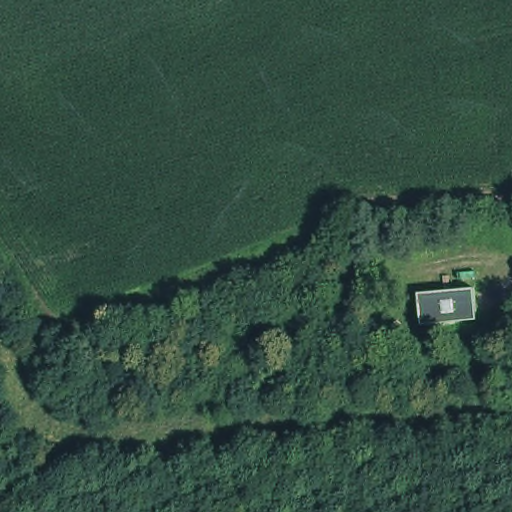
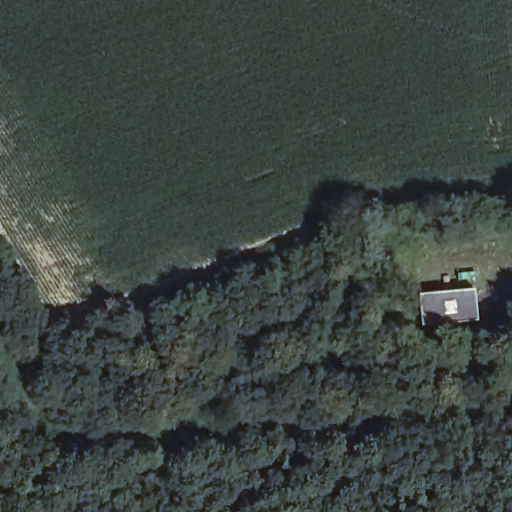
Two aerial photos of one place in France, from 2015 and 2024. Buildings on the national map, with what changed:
unchanged [(436,320),(436,294),(475,288),(476,317),(436,320)]

